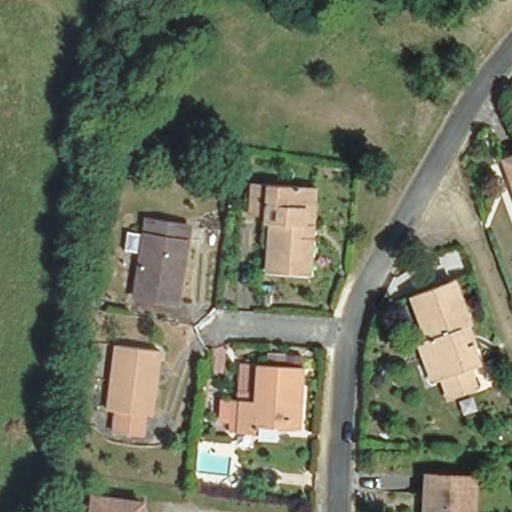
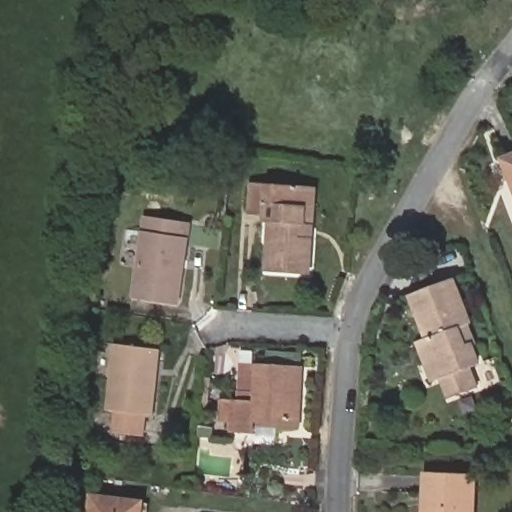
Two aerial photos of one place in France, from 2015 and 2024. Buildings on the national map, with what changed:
unchanged [(512,164),(512,211),(496,171),(512,164)]
unchanged [(266,275),(269,227),(263,226),(264,217),(248,216),(250,186),(304,189),(312,189),(308,239),(307,277),(266,275)]
unchanged [(184,226),(174,304),(131,299),(140,221),(184,226)]
unchanged [(465,369),(472,388),(447,398),(439,380),(434,382),(418,342),(425,340),(407,296),(447,281),(463,326),(470,342),(466,344),(473,366),(465,369)]
unchanged [(157,342),(152,407),(146,407),(144,430),(114,427),(116,405),(109,403),(115,337),(157,342)]
unchanged [(276,428),(251,427),(250,433),(232,433),(234,401),(250,402),(252,365),(296,367),(292,421),(292,428),(276,428)]
unchanged [(417,475),(467,477),(465,512),(415,512),(416,497),(417,475)]
unchanged [(135,512),(85,512),(87,501),(136,506),(135,512)]

